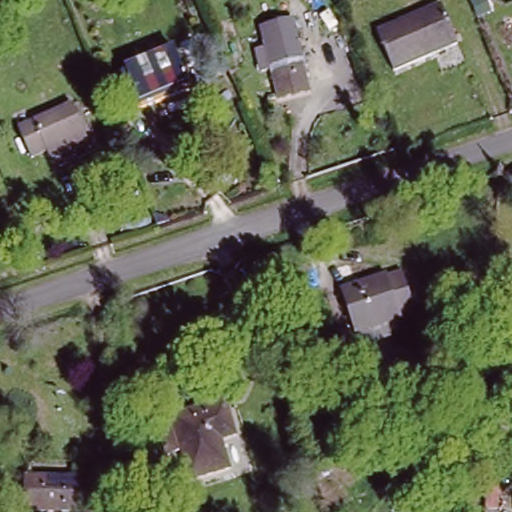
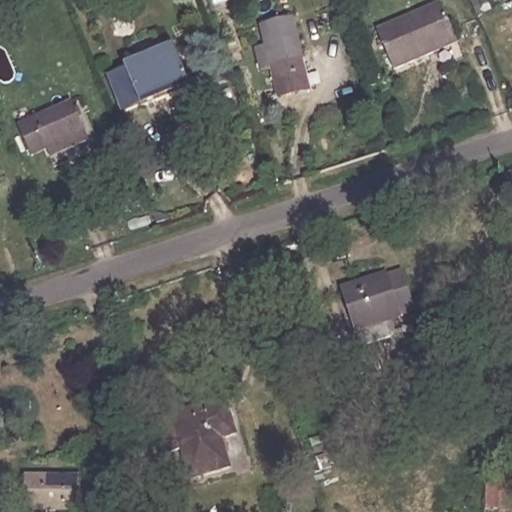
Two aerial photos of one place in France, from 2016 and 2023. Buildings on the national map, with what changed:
unchanged [(442,4),(459,45),(395,72),(378,31),(442,4)]
unchanged [(313,90),(280,101),(271,71),(262,74),(255,49),(264,45),(259,27),(291,19),(313,90)]
unchanged [(174,43),(189,81),(138,101),(123,63),(174,43)]
unchanged [(44,145),(31,150),(19,121),(73,99),(85,127),(89,138),(49,156),(44,145)]
unchanged [(354,329),(340,286),(368,277),(403,265),(418,307),(368,324),(354,329)]
unchanged [(165,417),(226,398),(236,430),(223,433),(232,462),(197,473),(188,446),(175,449),(165,417)]
unchanged [(24,473),(80,474),(79,505),(23,503),(24,473)]
unchanged [(78,508),(93,508),(93,512),(78,512),(78,508)]

